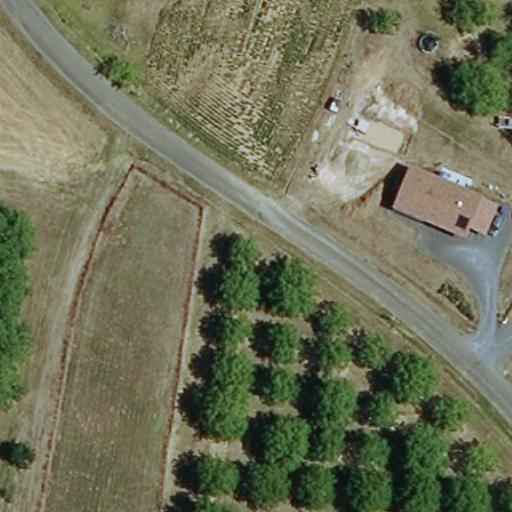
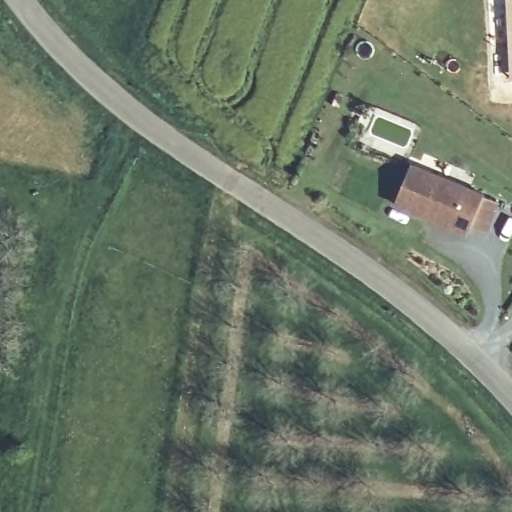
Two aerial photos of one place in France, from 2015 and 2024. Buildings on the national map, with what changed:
new [(507,80),(505,0),(512,0),(512,80),(507,80)]
unchanged [(502,201),(490,231),(474,225),(470,236),(395,206),(414,161),(502,201)]

